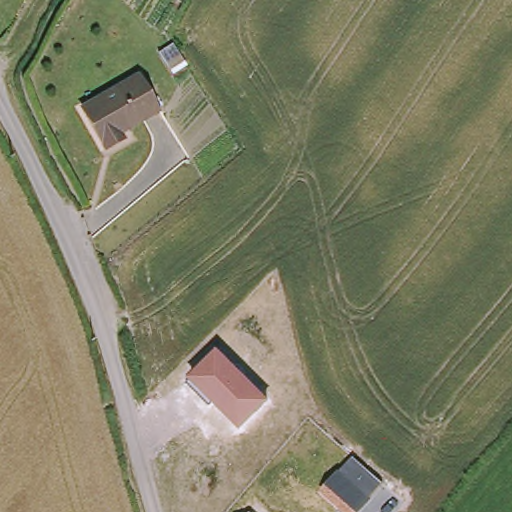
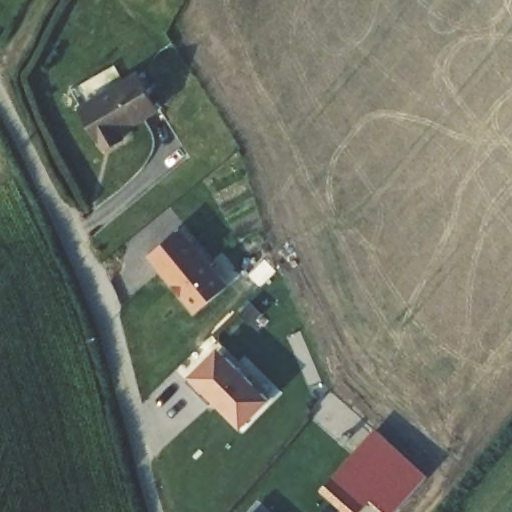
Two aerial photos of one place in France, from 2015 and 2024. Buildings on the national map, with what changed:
unchanged [(117,129),(123,140),(103,150),(77,108),(115,85),(132,75),(154,107),(143,114),(117,129)]
new [(228,286),(195,315),(147,258),(182,229),(228,286)]
unchanged [(187,383),(189,379),(220,350),(270,401),(241,430),(214,402),(210,406),(187,383)]
new [(393,512),(385,512),(370,499),(383,484),(353,457),(377,429),(427,475),(393,512)]
unchanged [(383,484),(370,499),(359,512),(343,512),(320,491),(339,471),(353,457),(383,484)]
unchanged [(252,512),(251,512),(251,511),(252,512)]

